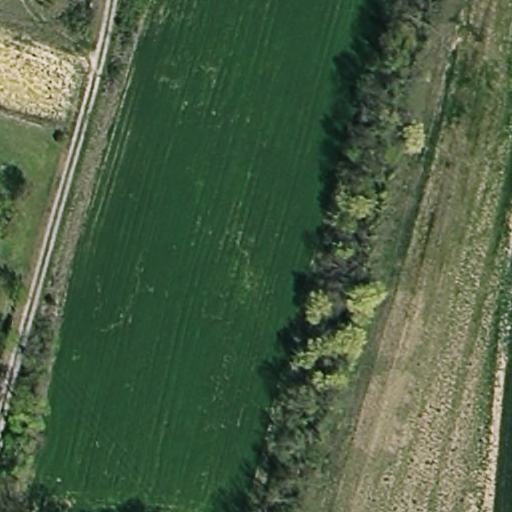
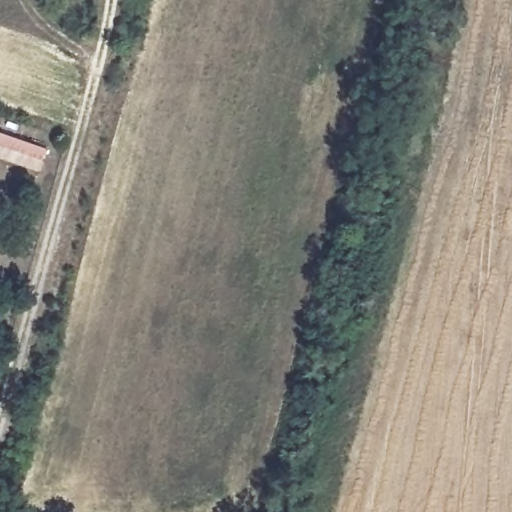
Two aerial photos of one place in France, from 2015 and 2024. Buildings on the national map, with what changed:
new [(41,172),(0,158),(0,132),(49,149),(41,172)]

